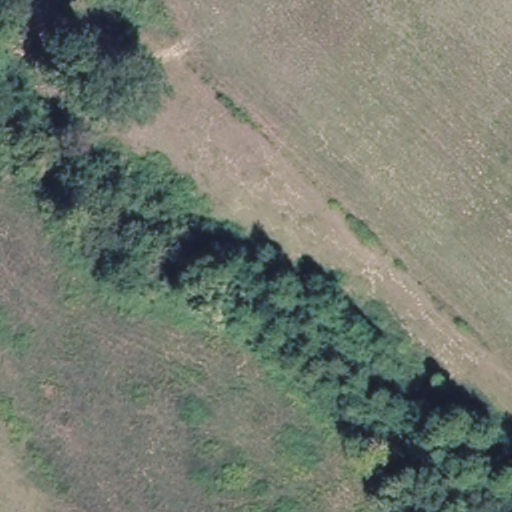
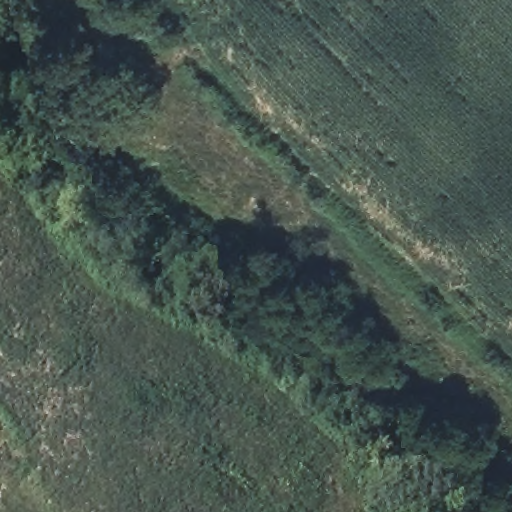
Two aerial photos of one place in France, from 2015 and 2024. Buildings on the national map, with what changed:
[]

